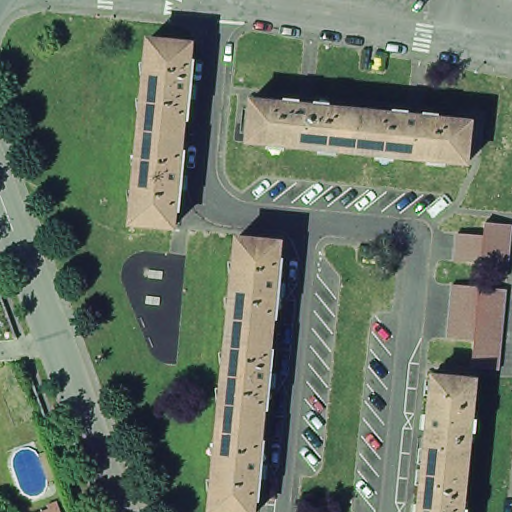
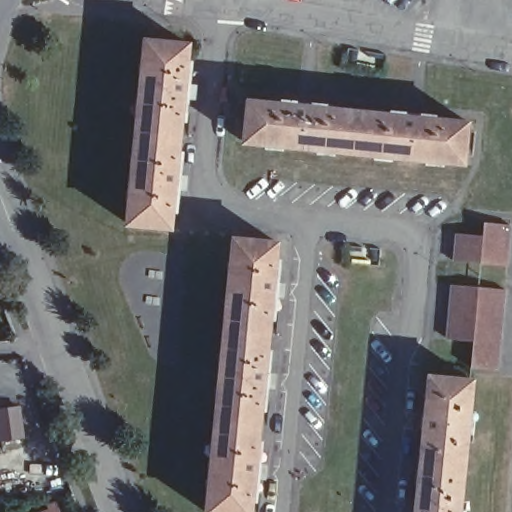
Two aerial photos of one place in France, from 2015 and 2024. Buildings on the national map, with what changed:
unchanged [(176,148),(181,148),(175,208),(169,207),(168,223),(126,219),(143,35),(186,39),(184,61),(189,61),(184,117),(178,116),(176,148)]
unchanged [(336,146),(336,151),(317,150),(318,145),(284,141),(284,146),(266,145),(266,139),(246,138),(251,96),(284,99),(284,94),(331,99),(331,104),(392,110),(393,106),(439,111),(439,115),(469,118),(466,159),(446,158),(446,162),(427,161),(427,156),(397,152),(396,157),(374,155),(374,150),(336,146)]
unchanged [(448,265),(449,252),(451,239),(478,241),(479,228),(506,231),(504,244),(503,257),(502,271),(474,268),(448,265)]
unchanged [(265,349),(271,349),(264,411),(259,411),(256,441),(262,441),(256,503),(251,502),(250,512),(207,512),(233,240),(275,244),(274,259),(279,259),(273,321),(268,320),(265,349)]
unchanged [(467,340),(441,338),(442,325),(443,311),(444,298),(446,285),(473,287),(499,290),(498,303),(497,317),(495,330),(494,343),(493,356),(492,370),(464,367),(466,354),(467,340)]
unchanged [(419,469),(414,468),(416,453),(421,453),(424,427),(418,427),(419,412),(426,413),(429,375),(473,380),(469,410),(474,411),(471,442),(466,441),(459,500),(465,500),(464,512),(415,512),(419,469)]
new [(1,442),(0,435),(0,410),(21,407),(26,438),(1,442)]
unchanged [(59,508),(61,512),(45,512),(59,508)]

